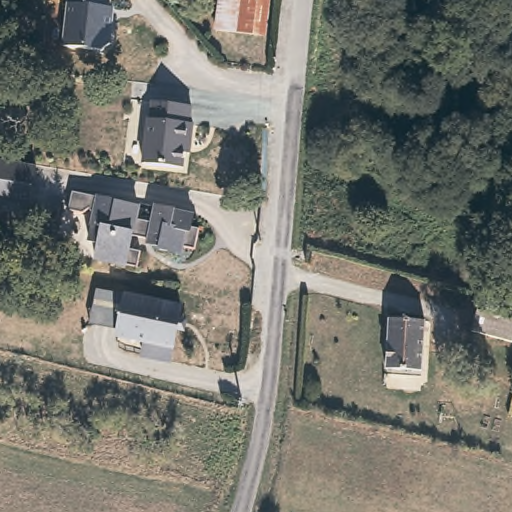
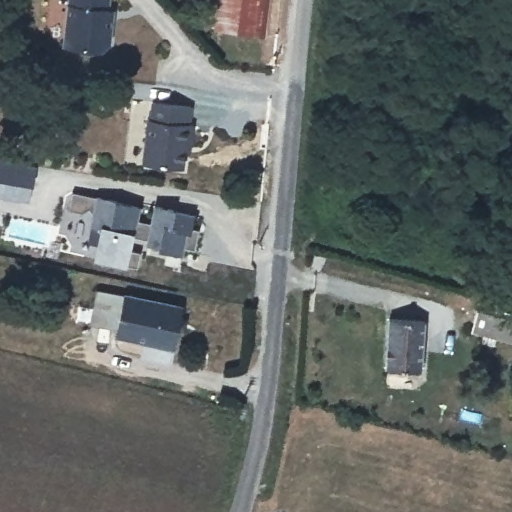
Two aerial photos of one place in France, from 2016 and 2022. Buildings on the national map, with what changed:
unchanged [(115,9),(112,42),(102,49),(65,46),(68,0),(112,0),(111,8),(115,9)]
unchanged [(221,0),(251,0),(246,34),(216,30),(221,0)]
unchanged [(246,34),(251,0),(272,0),(267,37),(246,34)]
unchanged [(192,107),(186,167),(142,163),(146,121),(149,121),(151,103),(192,107)]
unchanged [(0,198),(0,168),(1,162),(38,169),(40,169),(36,189),(35,188),(32,204),(6,199),(0,198)]
unchanged [(139,209),(137,221),(154,225),(158,209),(175,213),(175,214),(194,219),(192,230),(200,232),(196,253),(182,250),(181,257),(160,252),(161,249),(153,247),(154,243),(133,238),(130,251),(141,254),(138,270),(96,260),(99,244),(90,242),(95,218),(90,210),(84,214),(69,211),(73,193),(118,203),(118,204),(139,209)]
unchanged [(143,358),(146,343),(118,337),(126,298),(180,310),(171,349),(168,364),(143,358)]
unchanged [(503,305),(501,313),(512,316),(512,341),(474,331),(480,309),(485,310),(488,302),(503,305)]
unchanged [(420,323),(417,371),(384,370),(386,321),(420,323)]

